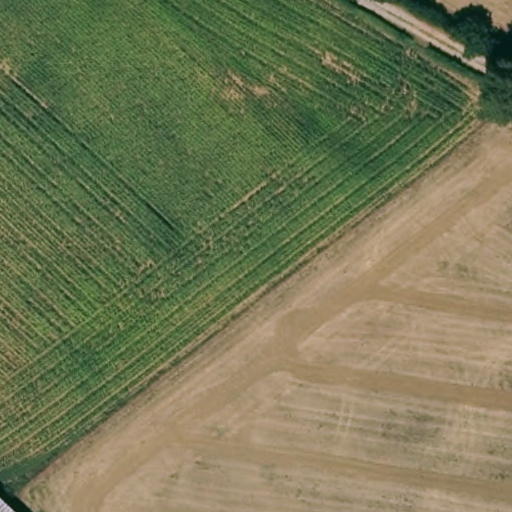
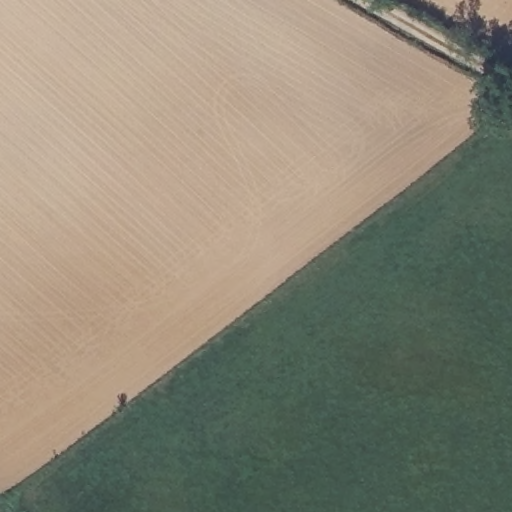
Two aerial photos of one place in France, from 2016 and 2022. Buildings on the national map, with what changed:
unchanged [(20,512),(0,512),(0,494),(20,512)]

